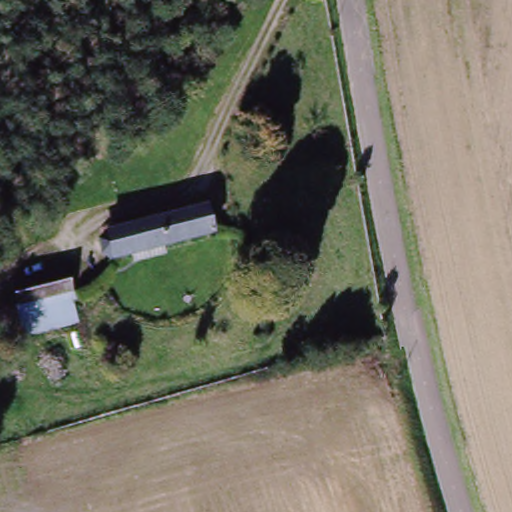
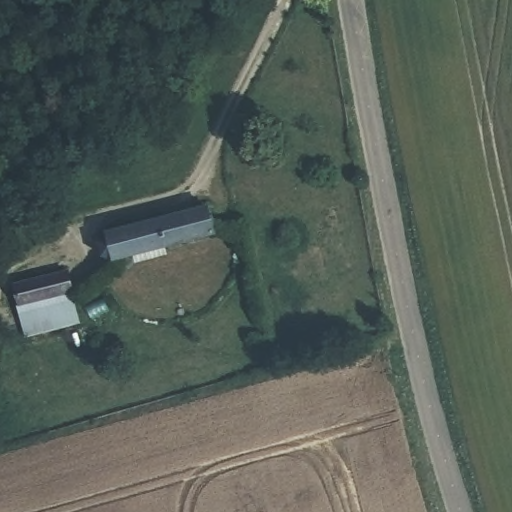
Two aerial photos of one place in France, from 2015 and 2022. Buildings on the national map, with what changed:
unchanged [(106,240),(207,213),(214,239),(113,266),(106,240)]
unchanged [(22,338),(7,283),(72,270),(77,290),(64,293),(71,326),(22,338)]

